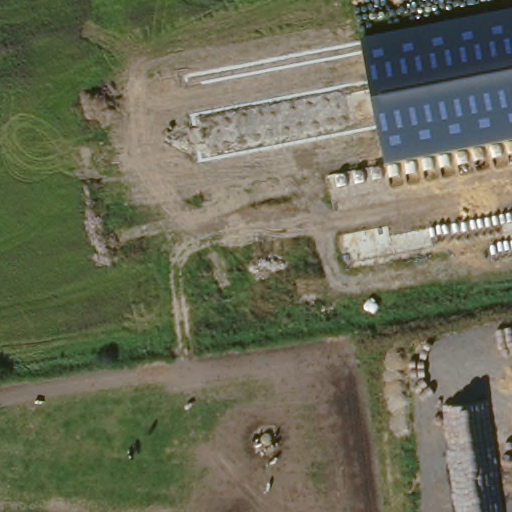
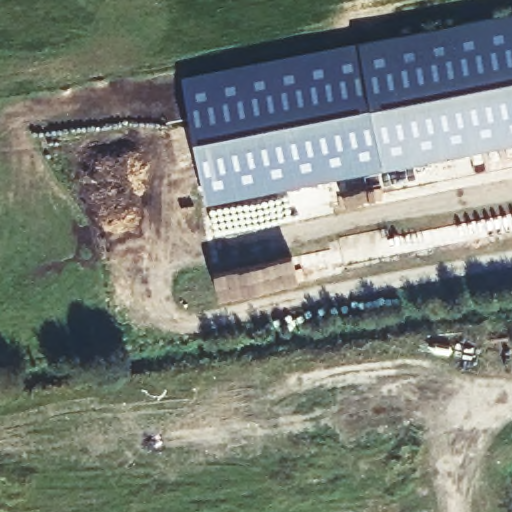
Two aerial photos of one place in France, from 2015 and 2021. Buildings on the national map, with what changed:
unchanged [(362,44),(512,13),(512,143),(386,168),(362,44)]
new [(386,168),(207,203),(184,75),(362,44),(386,168)]

